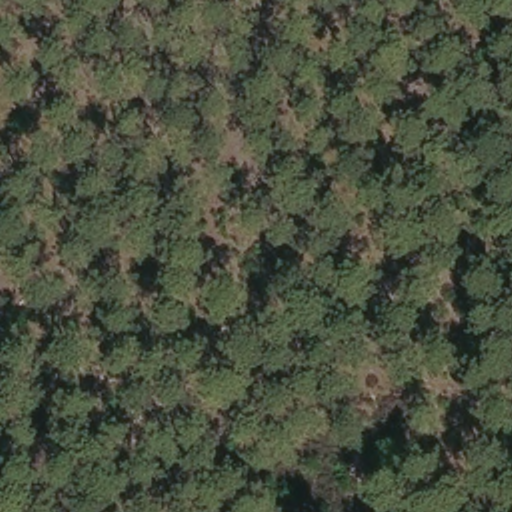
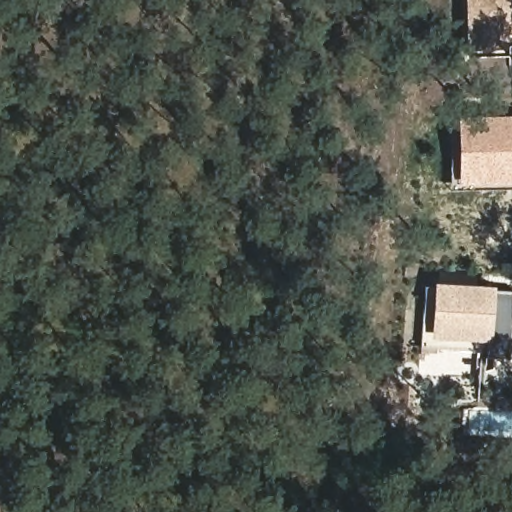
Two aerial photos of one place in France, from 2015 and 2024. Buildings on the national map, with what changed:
new [(465,44),(465,33),(465,0),(512,0),(512,44),(465,44)]
new [(512,116),(512,184),(460,185),(458,117),(512,116)]
new [(512,291),(512,330),(510,358),(488,356),(489,351),(422,347),(427,285),(436,286),(436,282),(496,286),(496,289),(512,291)]

